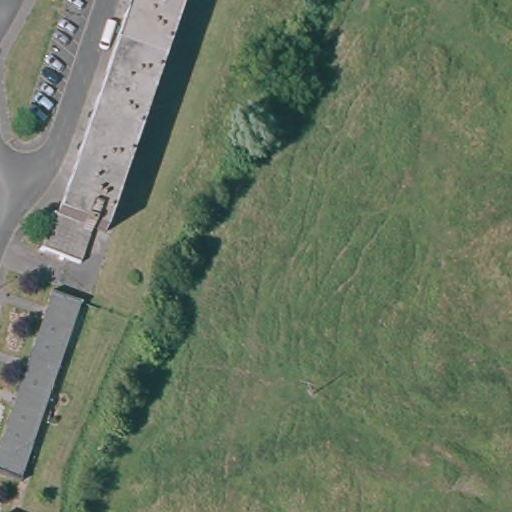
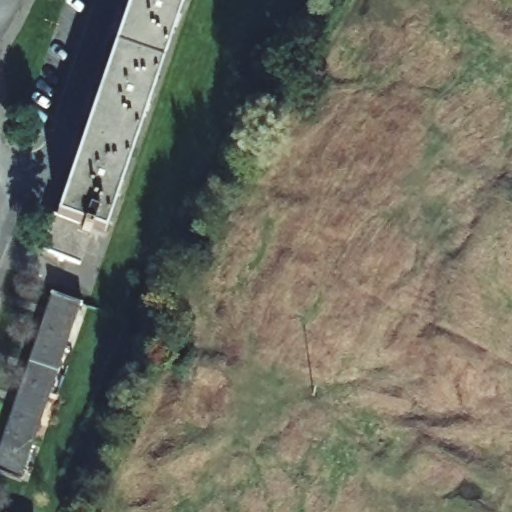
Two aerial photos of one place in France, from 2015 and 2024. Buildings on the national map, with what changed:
unchanged [(100,234),(87,230),(75,265),(33,251),(34,249),(37,250),(48,217),(45,217),(46,215),(48,216),(52,217),(126,0),(179,0),(100,234)]
unchanged [(50,295),(50,293),(82,303),(82,306),(80,306),(73,327),(60,365),(33,440),(33,441),(7,426),(37,341),(52,296),(50,295)]
unchanged [(22,481),(22,482),(0,475),(0,448),(7,426),(33,441),(20,480),(22,481)]

